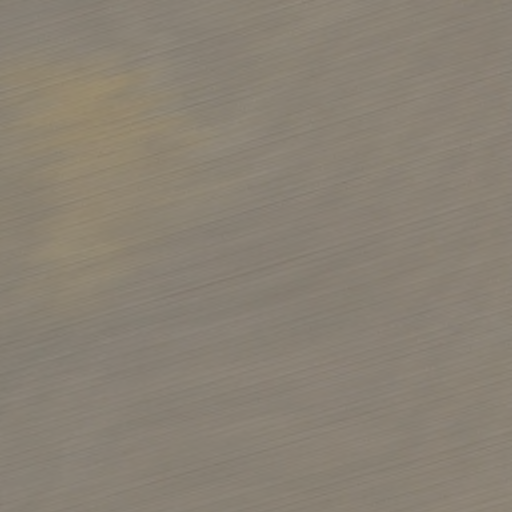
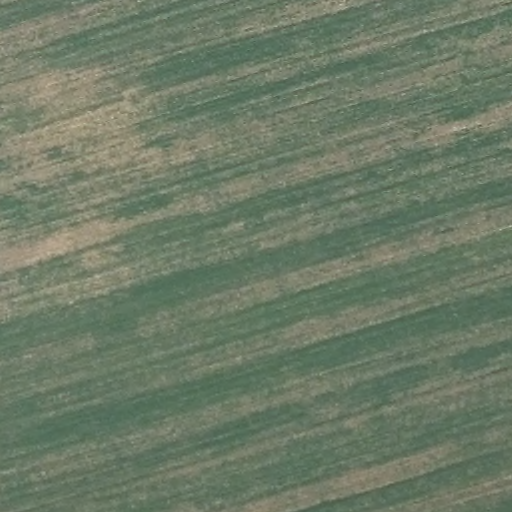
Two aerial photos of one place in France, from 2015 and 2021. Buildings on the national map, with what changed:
[]

